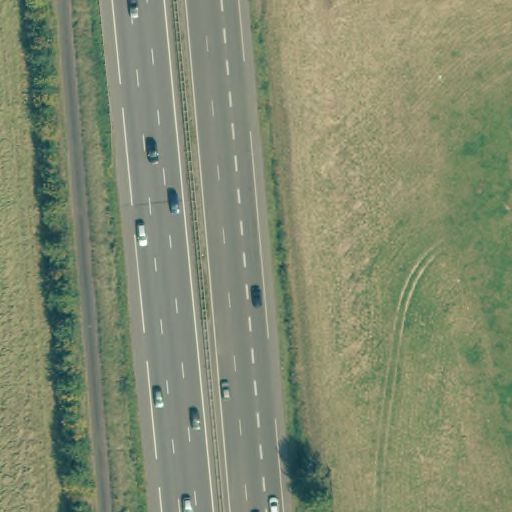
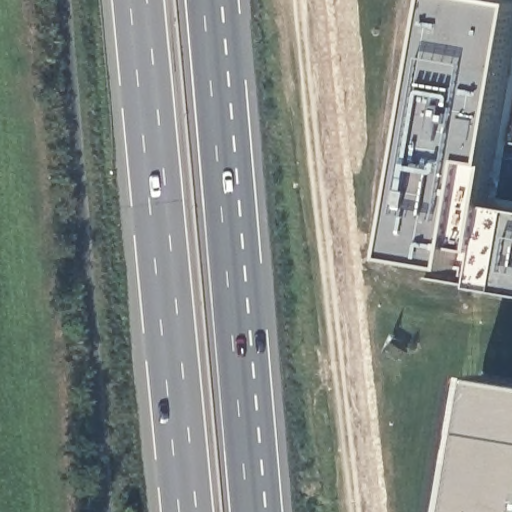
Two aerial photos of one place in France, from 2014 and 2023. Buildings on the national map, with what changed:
new [(512,0),(512,69),(489,205),(512,208),(512,293),(390,273),(436,0),(512,0)]
new [(512,379),(512,512),(460,512),(484,374),(512,379)]

